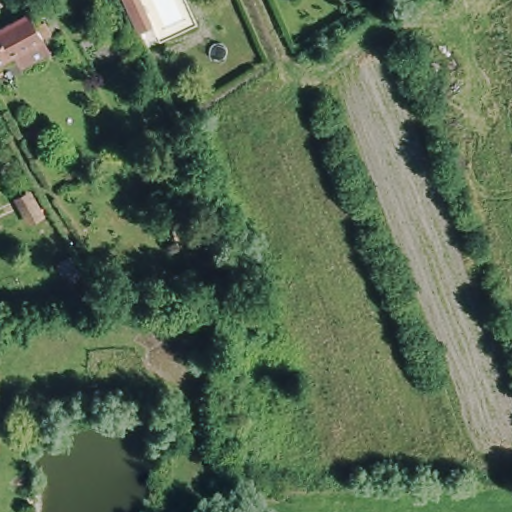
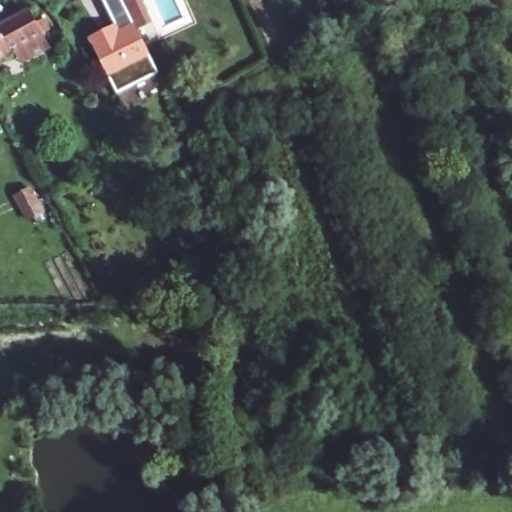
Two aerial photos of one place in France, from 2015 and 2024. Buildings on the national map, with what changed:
new [(147,24),(136,30),(156,74),(117,94),(89,36),(112,22),(102,0),(136,0),(147,24)]
unchanged [(40,36),(48,50),(17,66),(10,52),(0,57),(0,26),(27,12),(40,36)]

